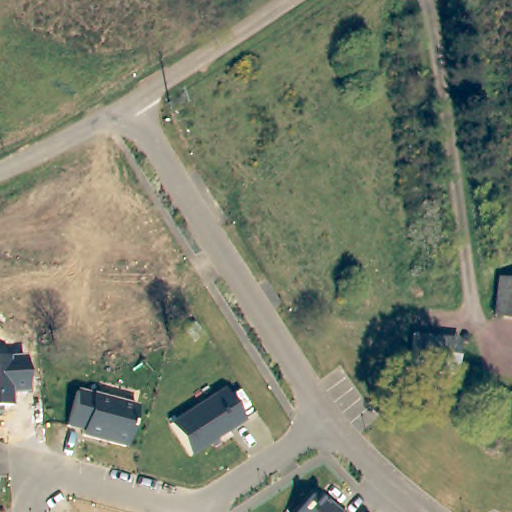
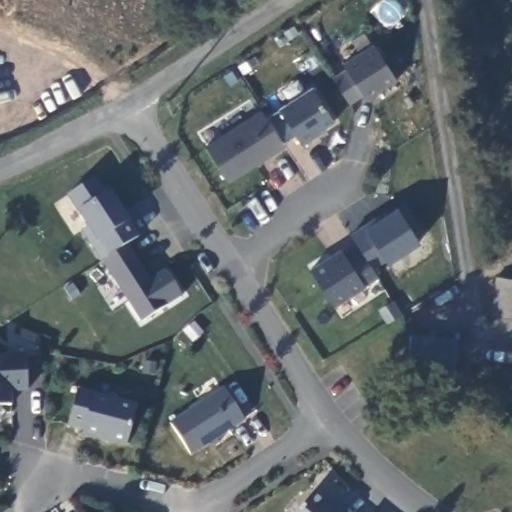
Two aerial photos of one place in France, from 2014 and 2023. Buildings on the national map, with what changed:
new [(366,100),(363,96),(351,104),(334,78),(347,72),(342,64),(374,44),(397,80),(366,100)]
unchanged [(337,119),(302,146),(294,136),(287,141),(269,114),(311,86),(337,119)]
new [(231,184),(206,148),(262,112),(286,147),(231,184)]
new [(81,230),(88,227),(77,212),(81,208),(69,195),(97,177),(108,189),(128,220),(140,235),(133,238),(152,278),(167,270),(183,296),(141,321),(81,230)]
new [(364,251),(361,253),(350,235),(364,228),(396,207),(419,242),(388,264),(387,262),(376,268),(364,251)]
new [(381,275),(335,306),(310,272),(342,250),(349,261),(364,251),(381,275)]
unchanged [(490,301),(492,277),(495,278),(512,279),(512,319),(489,316),(490,301)]
unchanged [(456,370),(436,368),(409,366),(412,329),(460,334),(458,354),(456,370)]
unchanged [(14,393),(14,409),(0,411),(0,356),(26,354),(30,391),(14,393)]
unchanged [(86,436),(87,431),(75,429),(83,391),(140,405),(131,447),(86,436)]
unchanged [(192,455),(174,427),(227,391),(246,420),(192,455)]
unchanged [(337,512),(305,512),(318,495),(337,512)]

